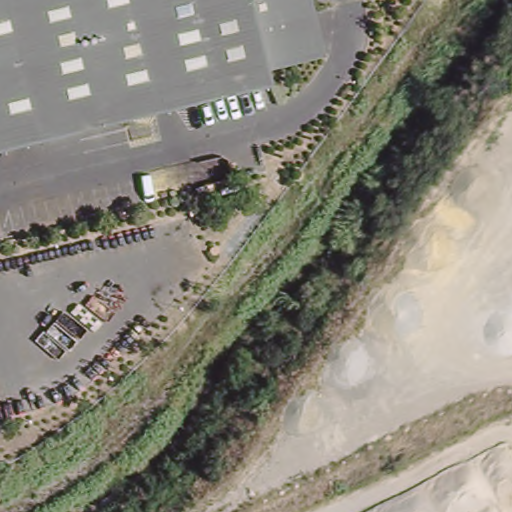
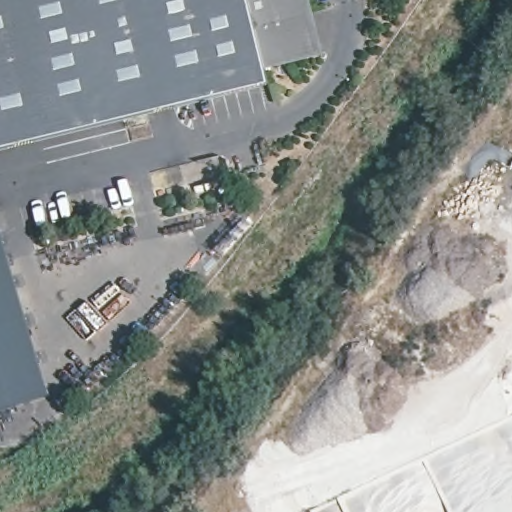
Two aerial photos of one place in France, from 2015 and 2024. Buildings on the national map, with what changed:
unchanged [(266,64),(271,85),(0,151),(0,0),(306,0),(319,52),(266,64)]
new [(0,225),(51,393),(0,408),(0,225)]

